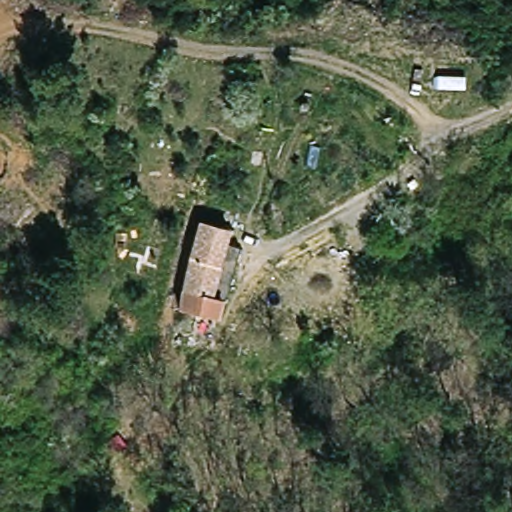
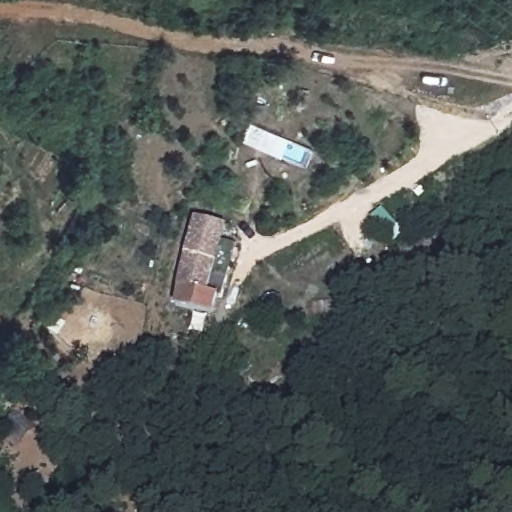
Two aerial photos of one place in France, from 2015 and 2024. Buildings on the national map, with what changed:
unchanged [(183,272),(198,217),(231,227),(213,294),(222,297),(217,316),(177,306),(183,272)]
unchanged [(340,293),(325,272),(342,260),(357,282),(340,293)]

